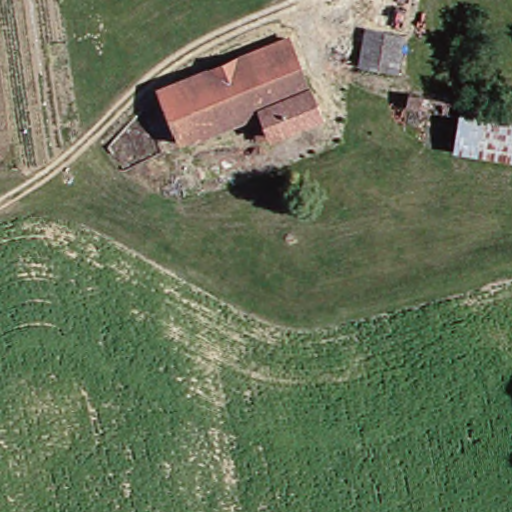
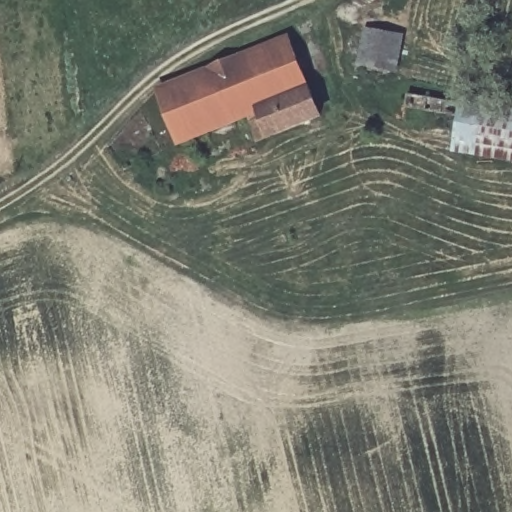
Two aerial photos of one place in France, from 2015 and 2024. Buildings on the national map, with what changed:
unchanged [(406,32),(402,71),(367,67),(372,30),(406,32)]
unchanged [(291,36),(322,117),(280,134),(266,110),(184,138),(166,86),(291,36)]
unchanged [(512,161),(457,152),(459,133),(408,122),(410,107),(413,96),(465,105),(466,97),(512,102),(512,161)]

